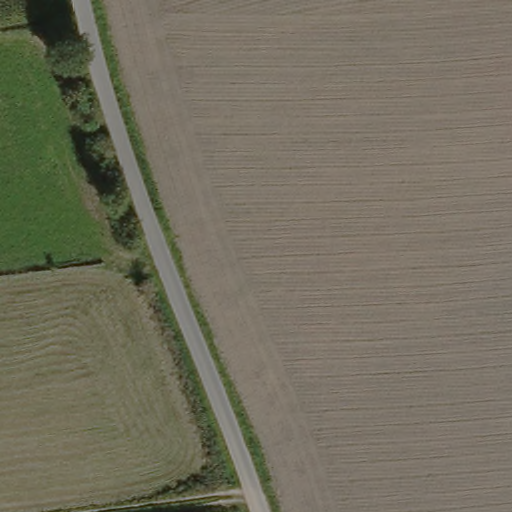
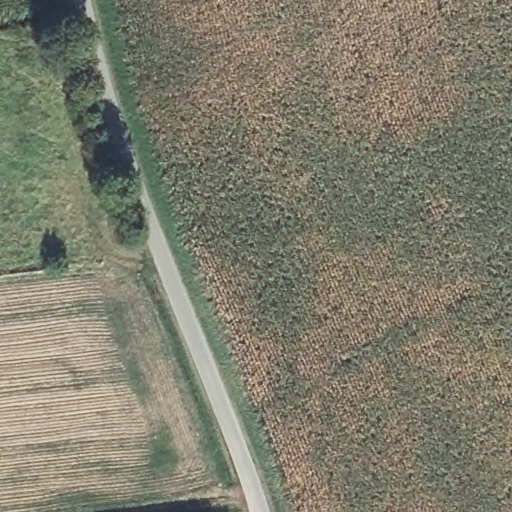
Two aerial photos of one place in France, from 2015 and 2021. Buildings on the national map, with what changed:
[]

